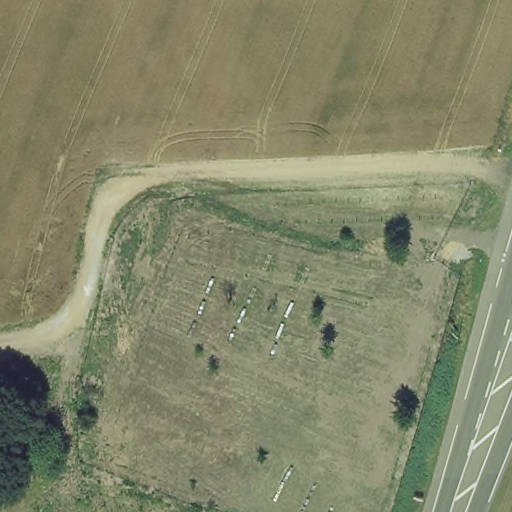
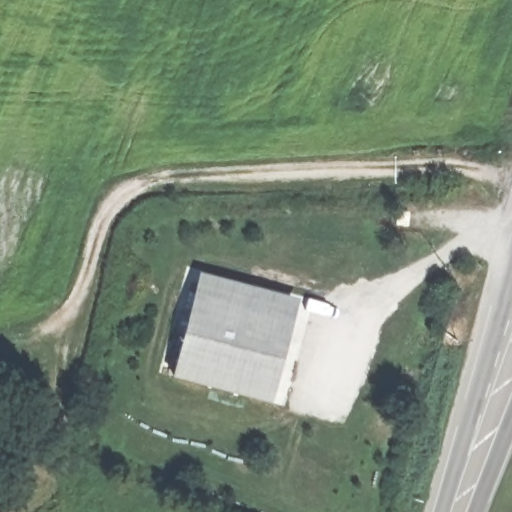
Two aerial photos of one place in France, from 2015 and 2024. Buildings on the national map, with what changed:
new [(398,212),(408,213),(407,225),(397,224),(398,212)]
new [(201,275),(297,301),(271,402),(174,376),(201,275)]

